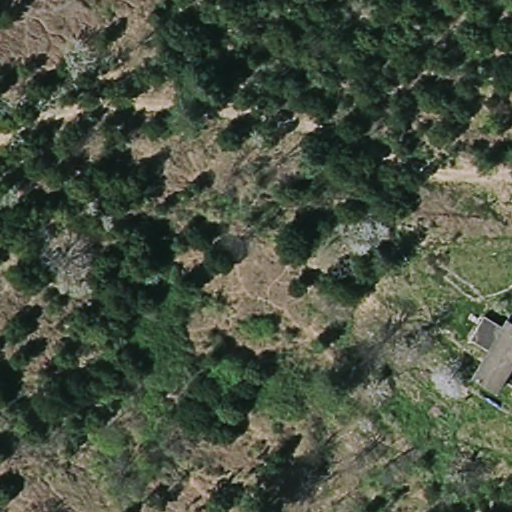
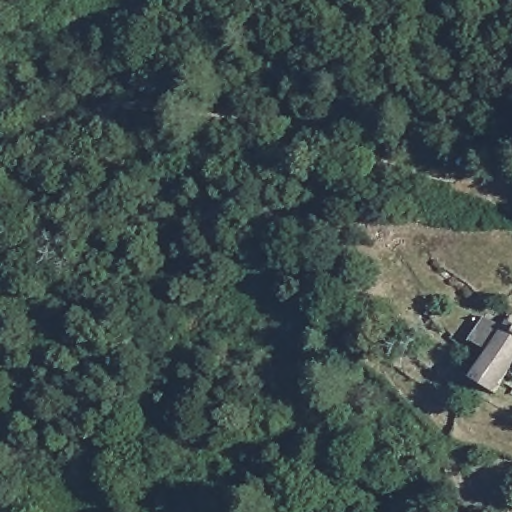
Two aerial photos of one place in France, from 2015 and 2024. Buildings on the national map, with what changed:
unchanged [(502,342),(485,332),(497,317),(512,325),(512,374),(512,375),(500,391),(480,378),(489,362),(502,342)]

